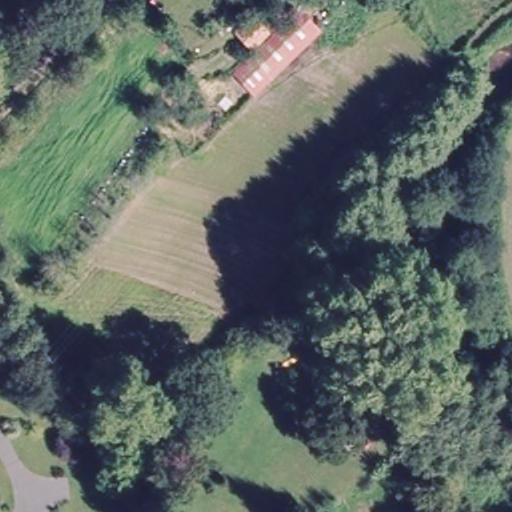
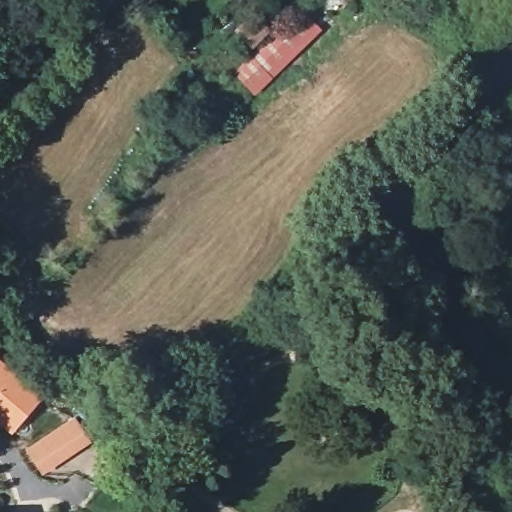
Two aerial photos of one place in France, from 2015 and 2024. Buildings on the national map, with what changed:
unchanged [(234,76),(293,20),(311,38),(253,95),(234,76)]
unchanged [(245,23),(255,34),(239,49),(228,39),(245,23)]
new [(9,435),(0,426),(0,362),(40,400),(9,435)]
new [(75,417),(90,443),(40,477),(24,450),(75,417)]

